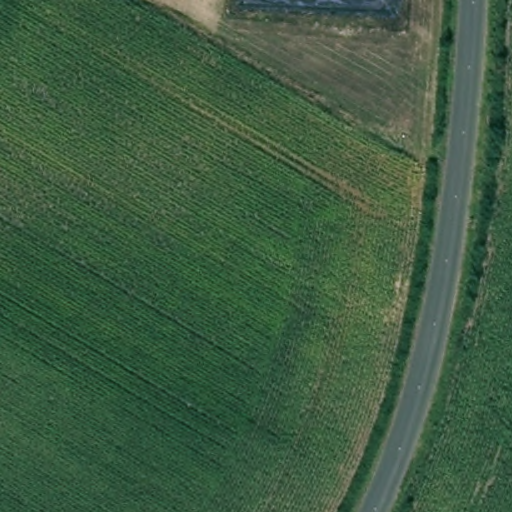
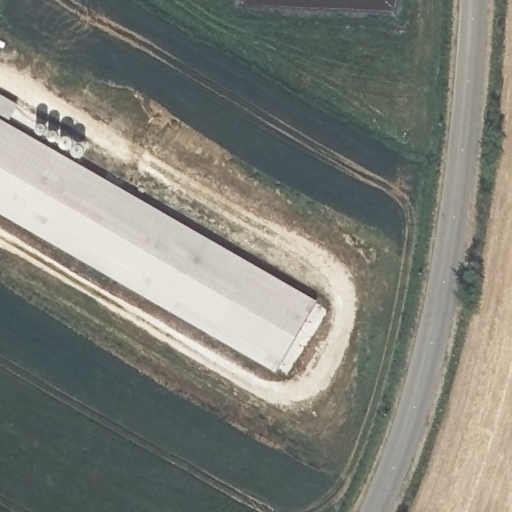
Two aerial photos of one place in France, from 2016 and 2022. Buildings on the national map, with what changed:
new [(0,213),(0,118),(318,299),(276,372),(0,213)]

